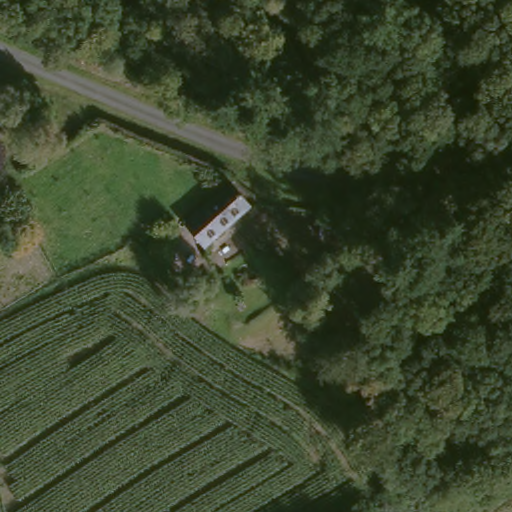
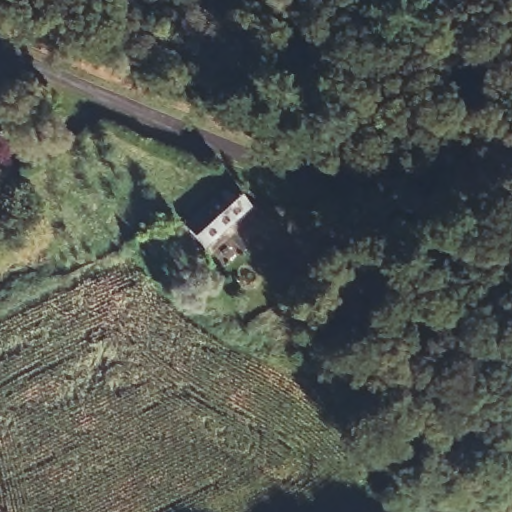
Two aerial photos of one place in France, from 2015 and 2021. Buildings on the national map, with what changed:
unchanged [(228,188),(247,211),(200,251),(180,230),(228,188)]
unchanged [(357,232),(350,248),(309,233),(315,217),(357,232)]

